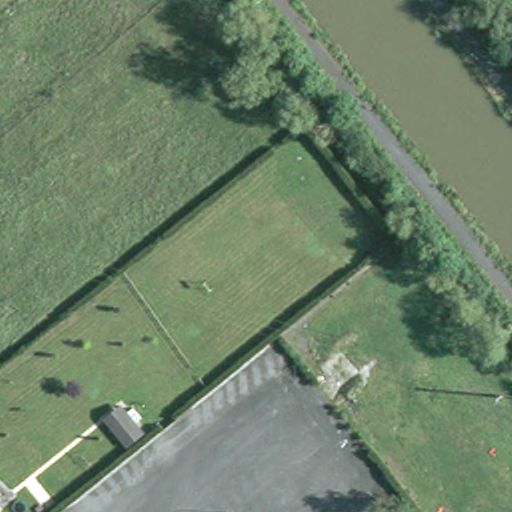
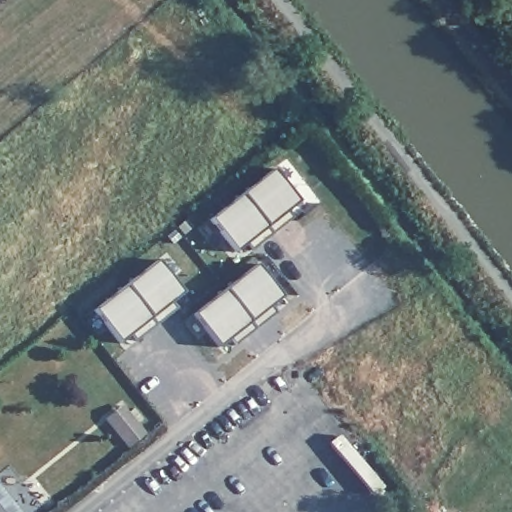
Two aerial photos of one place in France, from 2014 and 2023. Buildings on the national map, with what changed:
new [(270,165),(297,200),(286,209),(292,216),(249,250),(243,244),(232,252),(205,219),(270,165)]
new [(153,258),(180,292),(169,302),(174,309),(132,343),(125,336),(114,345),(87,311),(153,258)]
new [(255,264),(281,297),(270,306),(275,314),(232,348),(227,341),(215,350),(189,316),(255,264)]
unchanged [(129,446),(105,417),(100,410),(117,397),(122,404),(146,433),(129,446)]

